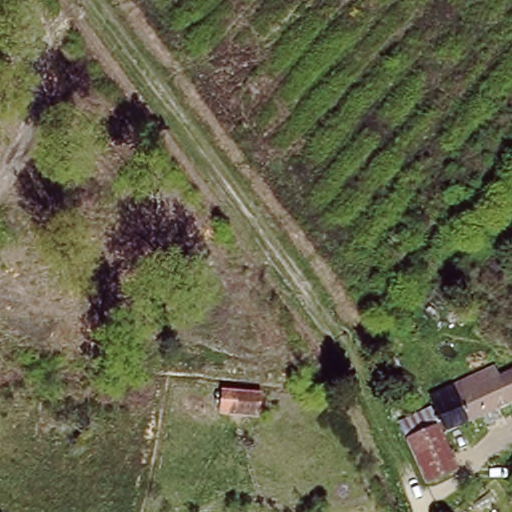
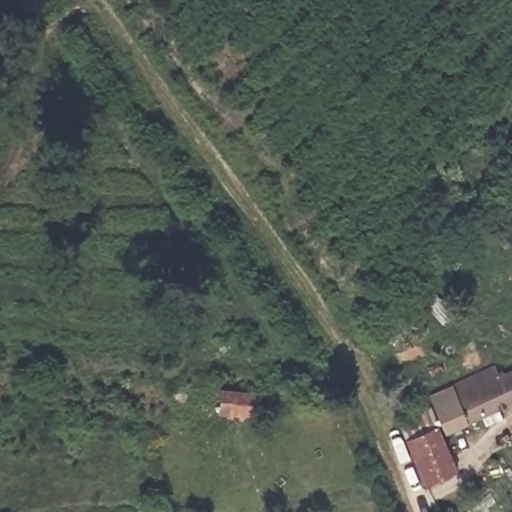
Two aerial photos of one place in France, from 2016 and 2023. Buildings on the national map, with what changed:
unchanged [(490,367),(495,377),(512,369),(512,405),(444,433),(427,395),(490,367)]
unchanged [(262,388),(262,416),(217,415),(217,391),(262,388)]
unchanged [(403,438),(434,427),(454,472),(423,485),(403,438)]

